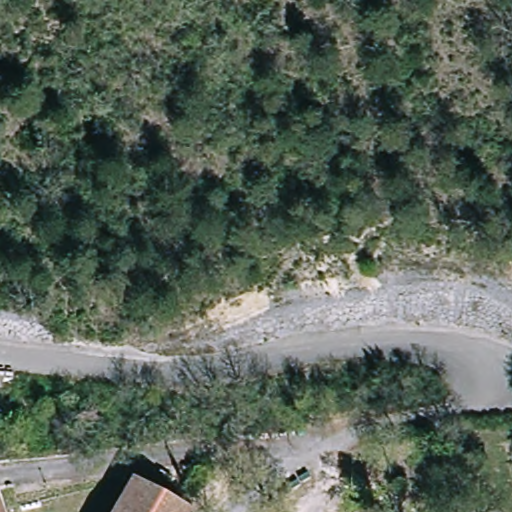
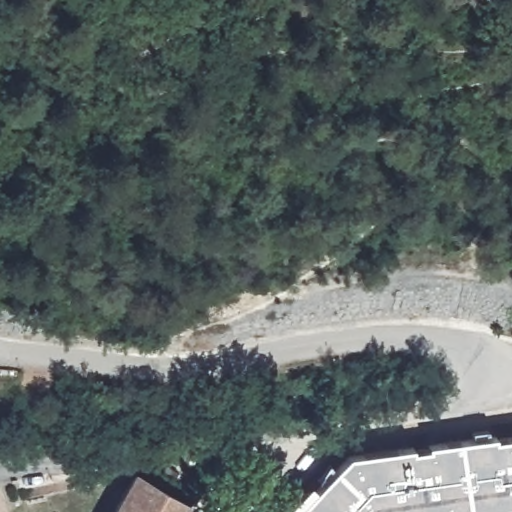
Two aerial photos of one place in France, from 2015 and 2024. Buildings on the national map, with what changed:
unchanged [(86,396),(97,397),(99,417),(68,420),(66,398),(86,396)]
new [(329,465),(336,472),(351,457),(413,447),(413,451),(429,448),(429,446),(496,435),(498,441),(512,438),(512,510),(498,512),(286,512),(311,485),(329,465)]
unchanged [(122,512),(144,471),(198,498),(190,512),(122,512)]
unchanged [(8,512),(0,512),(0,498),(3,497),(8,512)]

